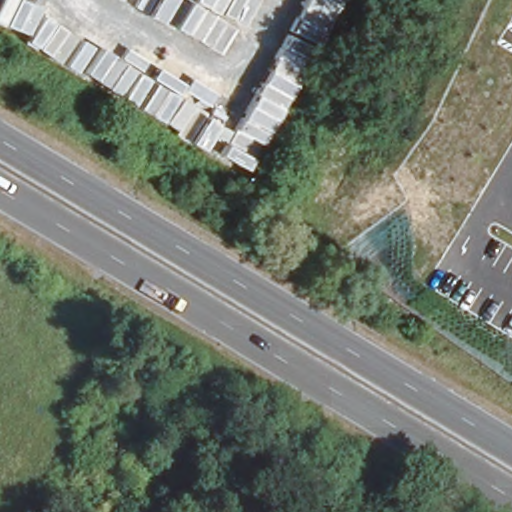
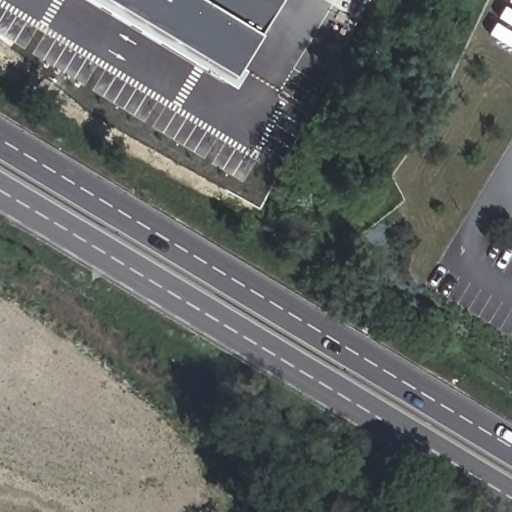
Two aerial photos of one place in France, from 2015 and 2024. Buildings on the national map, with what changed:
new [(92,0),(275,0),(257,29),(228,81),(92,0)]

